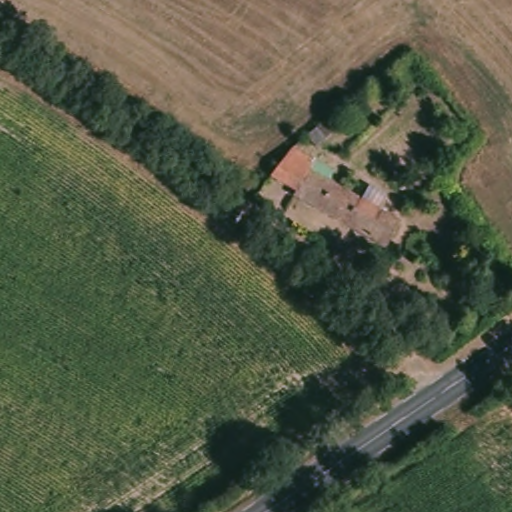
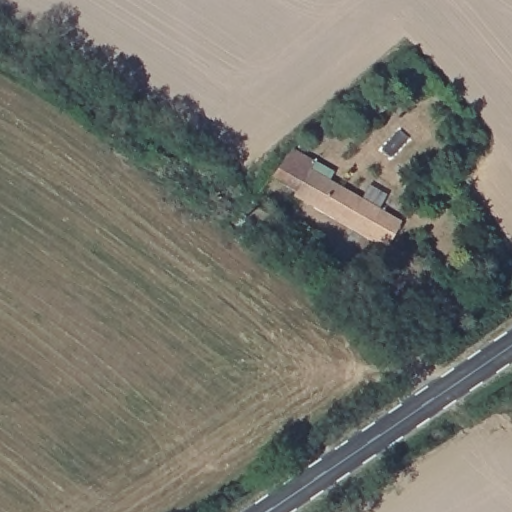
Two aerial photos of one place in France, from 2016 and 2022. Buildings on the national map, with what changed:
unchanged [(400,223),(380,249),(288,189),(298,174),(279,160),(290,151),(400,223)]

